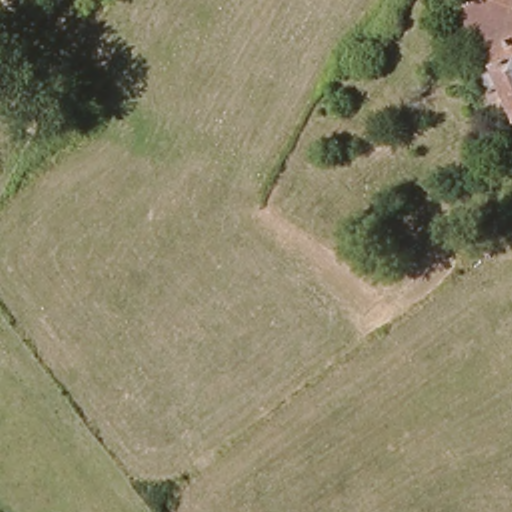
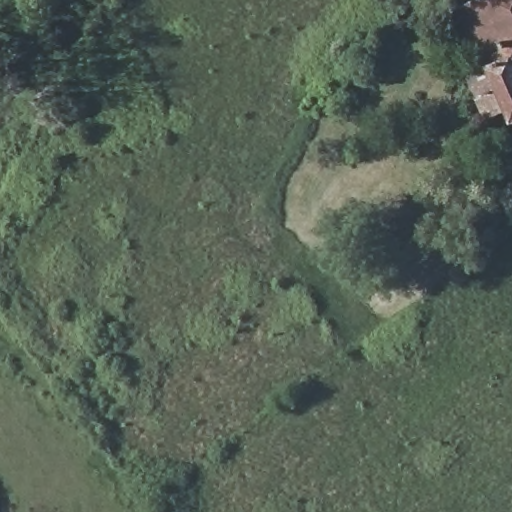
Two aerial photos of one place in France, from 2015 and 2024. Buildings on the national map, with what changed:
unchanged [(498,0),(512,0),(512,113),(490,119),(476,80),(496,72),(489,57),(482,59),(471,18),(456,21),(448,0),(493,0),(493,1),(498,0)]

